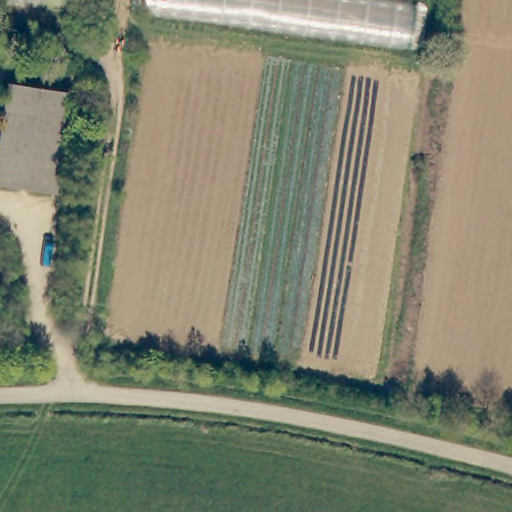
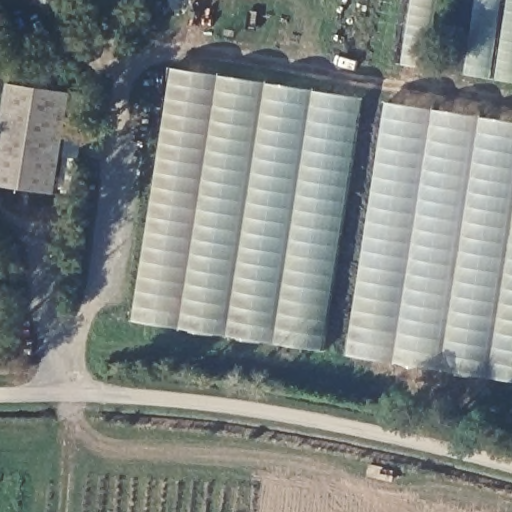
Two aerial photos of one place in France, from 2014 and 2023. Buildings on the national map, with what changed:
new [(410,0),(437,0),(427,68),(401,66),(410,0)]
new [(461,76),(473,0),(512,0),(512,84),(461,76)]
new [(132,321),(169,68),(362,99),(322,352),(132,321)]
unchanged [(54,192),(0,182),(0,141),(11,81),(71,91),(54,192)]
new [(346,356),(386,103),(512,122),(512,382),(346,356)]

